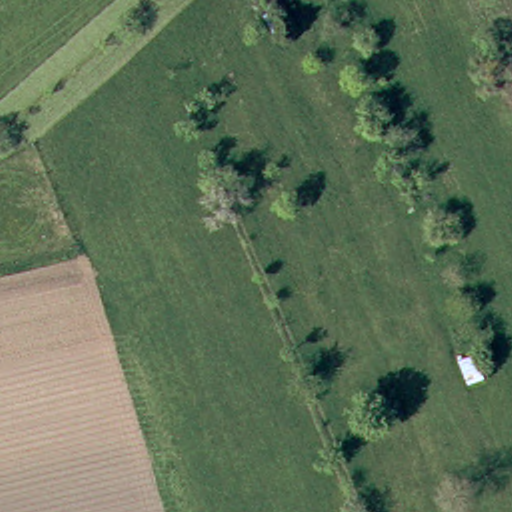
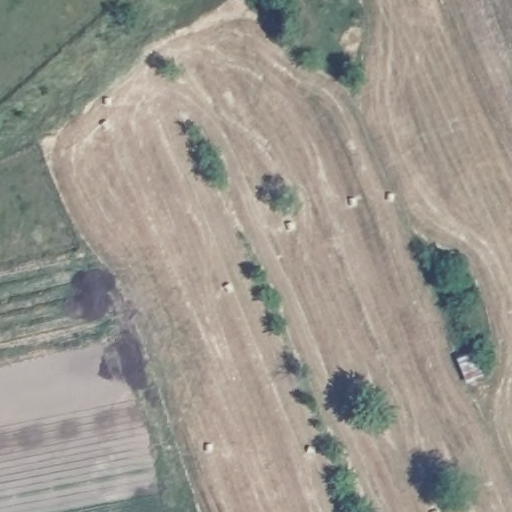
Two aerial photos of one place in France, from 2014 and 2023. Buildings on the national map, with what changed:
[]

